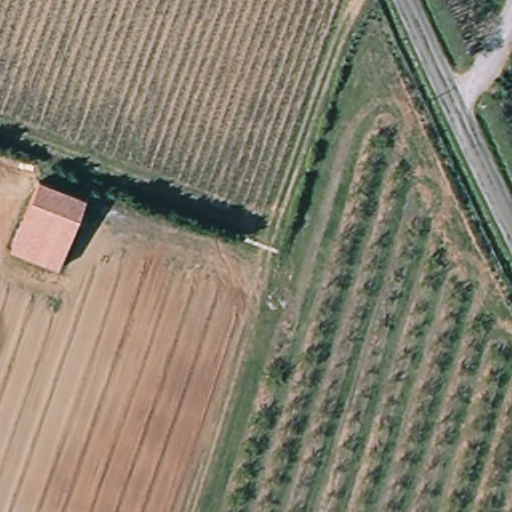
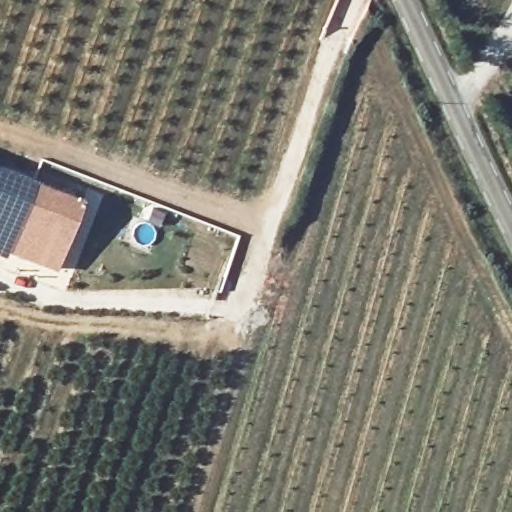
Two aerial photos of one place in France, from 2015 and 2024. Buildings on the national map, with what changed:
new [(13,250),(9,257),(0,254),(0,164),(39,179),(13,250)]
unchanged [(60,267),(13,250),(39,179),(86,197),(60,267)]

